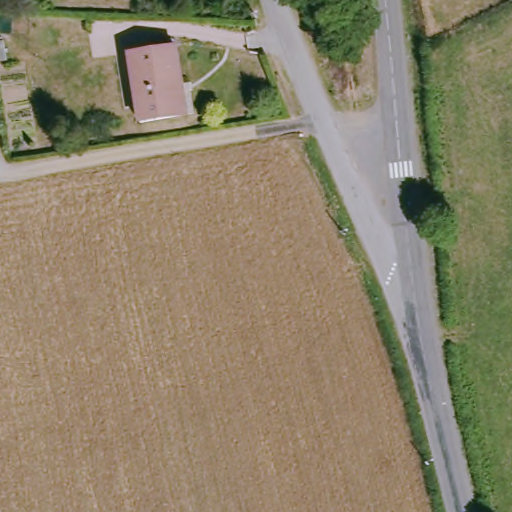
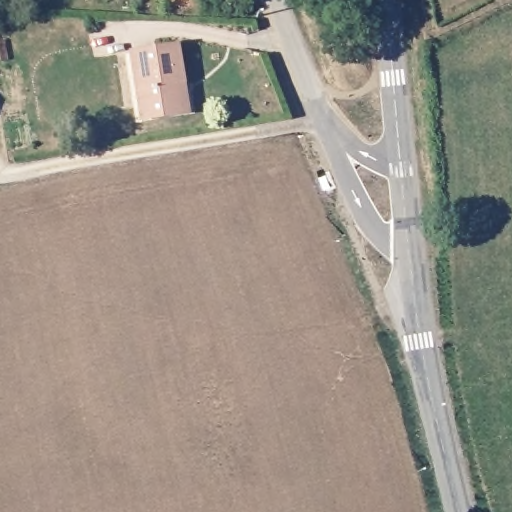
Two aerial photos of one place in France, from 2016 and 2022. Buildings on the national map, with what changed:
unchanged [(181,117),(141,122),(131,54),(178,47),(183,83),(188,116),(181,117)]

